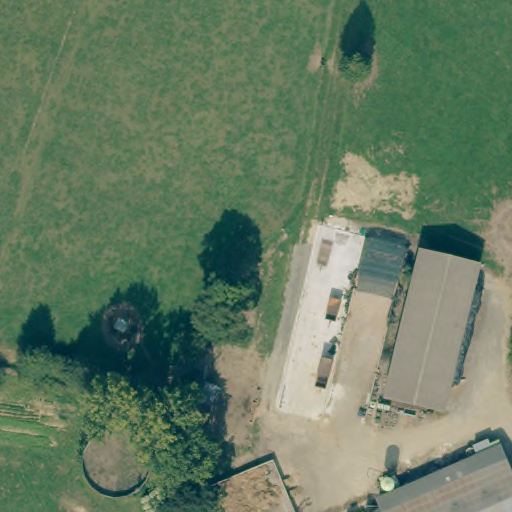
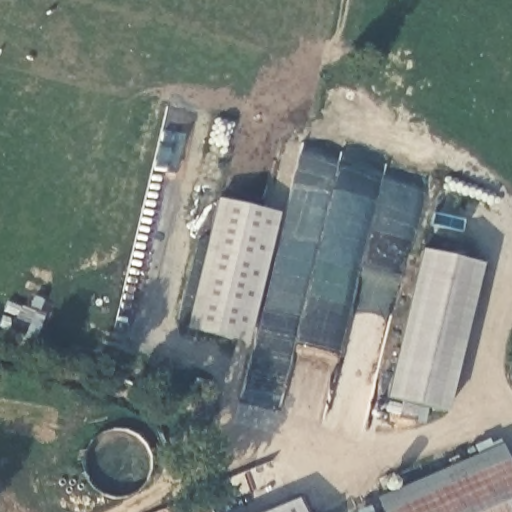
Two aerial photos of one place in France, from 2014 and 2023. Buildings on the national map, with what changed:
new [(184,329),(216,200),(277,214),(245,343),(184,329)]
unchanged [(444,412),(386,397),(421,251),(479,265),(444,412)]
unchanged [(380,509),(376,498),(477,455),(473,447),(488,440),(489,443),(499,441),(512,469),(512,512),(378,512),(380,509)]

